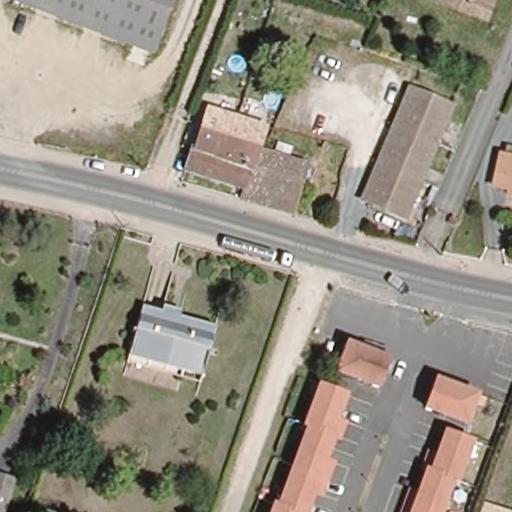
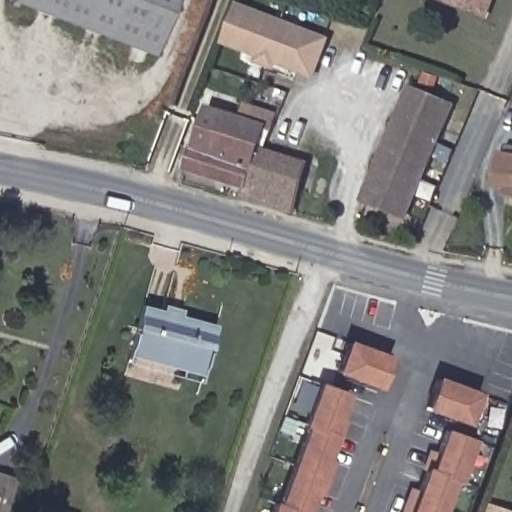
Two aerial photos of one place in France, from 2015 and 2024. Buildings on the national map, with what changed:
unchanged [(157,52),(23,0),(178,0),(157,52)]
unchanged [(450,0),(491,0),(488,6),(483,15),(450,0)]
new [(277,71),(255,62),(257,57),(222,44),(237,2),(332,38),(316,80),(279,66),(277,71)]
unchanged [(458,111),(400,222),(359,204),(418,91),(458,111)]
unchanged [(242,202),(245,192),(182,171),(193,142),(197,144),(213,102),(288,131),(283,144),(293,149),(289,159),(302,163),(285,214),(242,202)]
unchanged [(496,177),(507,151),(512,152),(512,182),(496,177)]
unchanged [(511,190),(512,184),(512,190),(511,190)]
unchanged [(203,378),(132,357),(146,306),(219,327),(203,378)]
unchanged [(347,345),(388,360),(378,388),(337,374),(347,345)]
unchanged [(332,426),(337,427),(308,507),(304,506),(302,512),(272,512),(278,495),(282,496),(310,417),(312,418),(327,379),(347,387),(332,426)]
unchanged [(476,395),(466,423),(426,409),(436,380),(476,395)]
unchanged [(452,473),(456,475),(443,512),(412,512),(428,465),(432,467),(446,427),(466,435),(452,473)]
new [(512,511),(512,512),(479,512),(483,501),(512,511)]

